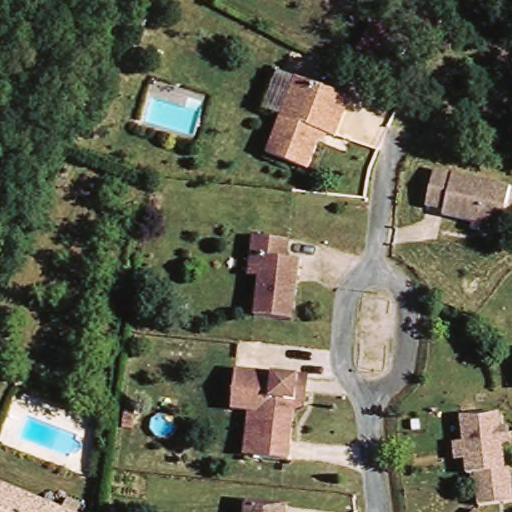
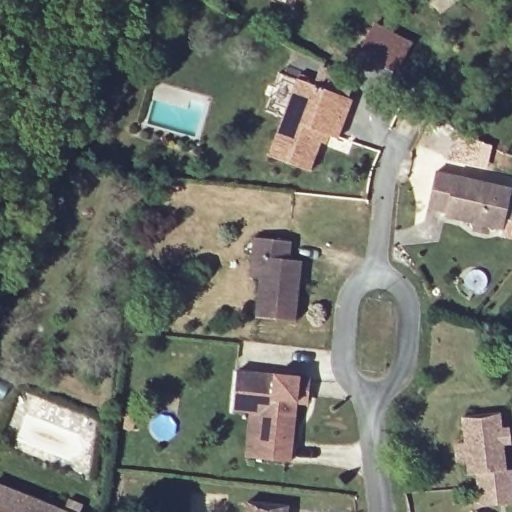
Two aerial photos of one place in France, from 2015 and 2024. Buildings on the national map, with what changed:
new [(413,43),(397,73),(358,53),(374,23),(413,43)]
unchanged [(307,172),(265,152),(298,78),(352,104),(336,139),(325,134),(307,172)]
unchanged [(498,192),(486,229),(435,213),(437,208),(418,201),(428,170),(498,192)]
unchanged [(291,241),(289,262),(298,263),(292,319),(256,314),(260,272),(252,270),(254,254),(256,237),(291,241)]
unchanged [(233,413),(237,375),(300,381),(292,461),(256,458),(243,457),(246,414),(233,413)]
unchanged [(501,414),(506,471),(512,470),(512,503),(479,507),(475,472),(468,473),(465,417),(501,414)]
unchanged [(67,500),(80,506),(77,512),(0,512),(0,479),(61,511),(67,500)]
unchanged [(275,504),(275,512),(234,512),(235,502),(275,504)]

